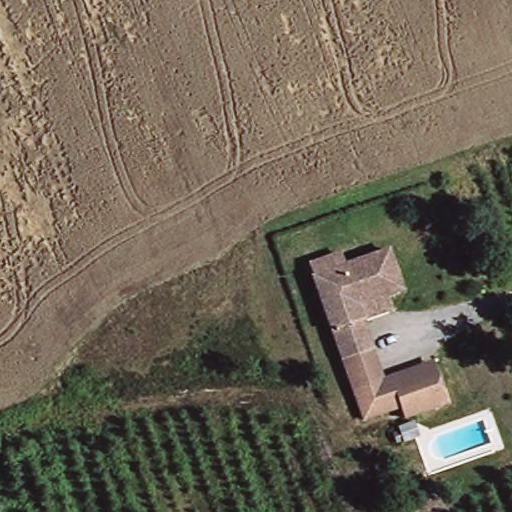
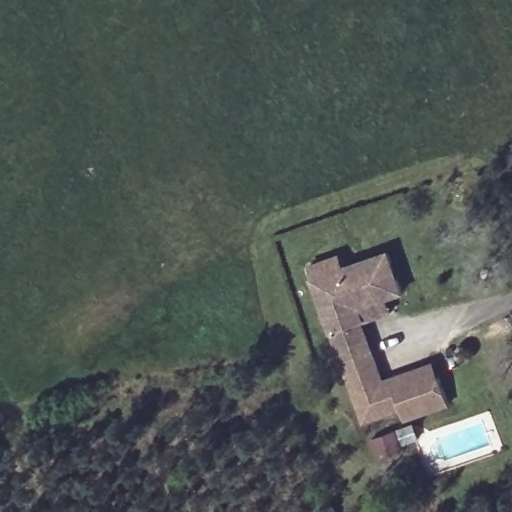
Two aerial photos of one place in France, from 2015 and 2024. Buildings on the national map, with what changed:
unchanged [(367,323),(361,325),(370,349),(341,360),(312,278),(307,263),(343,252),(347,266),(389,251),(405,295),(387,301),(392,313),(367,323)]
unchanged [(382,381),(352,392),(341,360),(370,349),(382,381)]
unchanged [(404,420),(400,409),(363,422),(352,392),(382,381),(391,378),(435,364),(440,377),(449,404),(404,420)]

